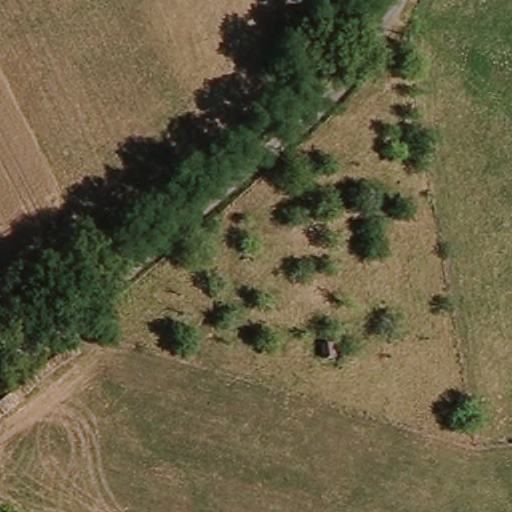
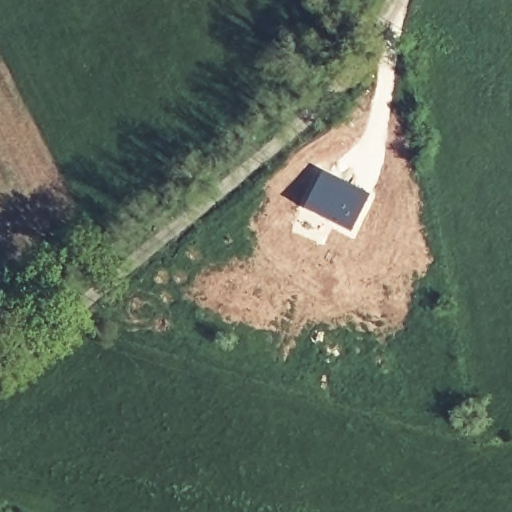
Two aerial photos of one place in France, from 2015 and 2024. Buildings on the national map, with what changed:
new [(323,170),(371,194),(352,233),(304,207),(323,170)]
unchanged [(335,358),(324,358),(324,342),(334,342),(335,358)]

